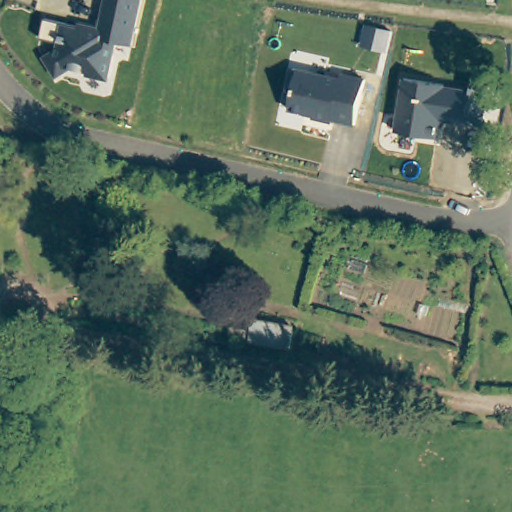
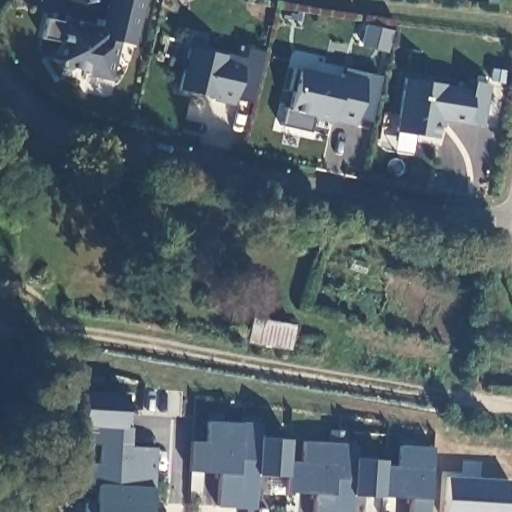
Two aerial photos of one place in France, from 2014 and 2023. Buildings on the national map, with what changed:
unchanged [(107,79),(86,74),(86,72),(69,68),(56,77),(44,57),(58,49),(60,43),(40,39),(45,18),(78,26),(77,29),(99,34),(106,0),(141,0),(131,45),(116,41),(107,79)]
unchanged [(212,101),(213,97),(177,89),(186,46),(244,57),(232,105),(212,101)]
unchanged [(292,92),(287,91),(292,69),(339,79),(340,75),(364,80),(353,125),(332,120),(331,122),(312,118),(312,116),(288,110),(292,92)]
unchanged [(466,124),(444,121),(436,126),(434,139),(395,132),(403,79),(443,85),(442,87),(470,92),(471,82),(487,85),(485,103),(481,127),(466,124)]
unchanged [(251,322),(293,330),(290,348),(248,341),(251,322)]
unchanged [(232,327),(247,330),(245,340),(230,337),(232,327)]
new [(123,427),(130,427),(129,445),(157,447),(152,512),(84,512),(84,503),(95,503),(96,485),(84,483),(86,462),(97,463),(99,443),(81,441),(85,390),(125,392),(123,427)]
new [(429,512),(409,512),(411,498),(381,497),(353,494),(353,512),(312,512),(313,493),(284,492),(285,477),(258,475),(257,510),(217,507),(217,472),(189,471),(192,440),(206,441),(208,420),(263,423),(264,436),(290,438),(287,462),(302,462),(303,441),(355,445),(355,453),(387,457),(386,465),(398,466),(401,445),(432,448),(429,512)]
new [(429,495),(445,496),(446,477),(508,480),(507,512),(428,512),(429,495)]

